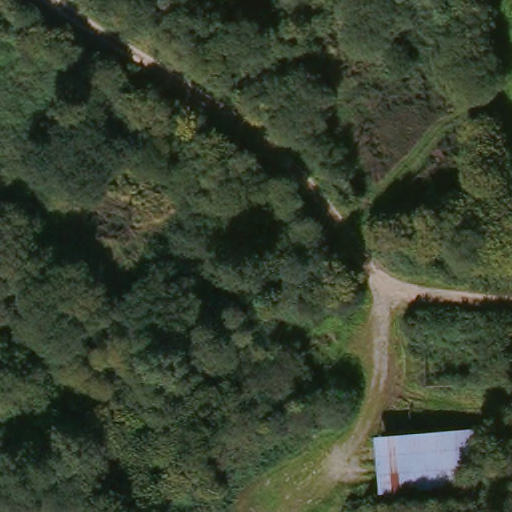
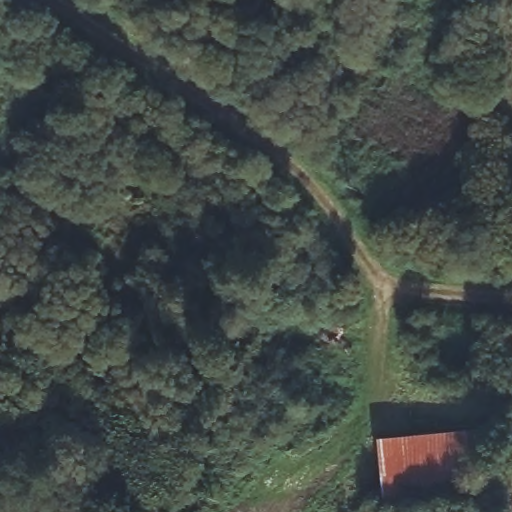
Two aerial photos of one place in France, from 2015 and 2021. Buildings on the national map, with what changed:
unchanged [(485,492),(379,503),(377,433),(474,427),(485,492)]

